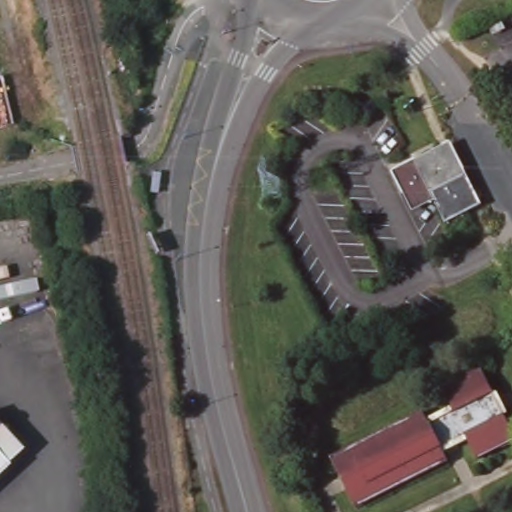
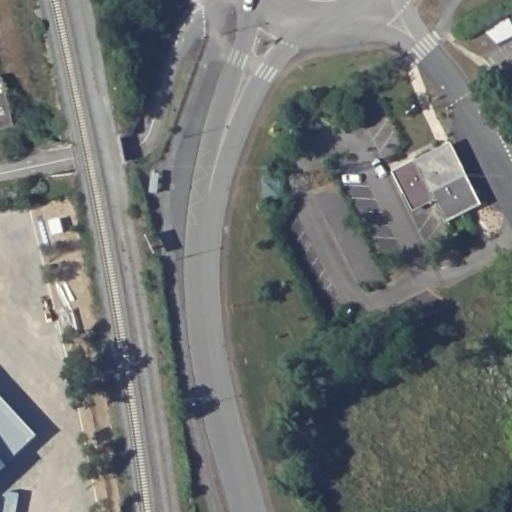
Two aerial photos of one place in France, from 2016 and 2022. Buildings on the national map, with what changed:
unchanged [(420,153),(437,145),(440,152),(450,147),(463,175),(474,195),(465,200),(468,207),(453,214),(441,190),(420,201),(400,163),(420,153)]
demolished [(427,417),(432,427),(455,415),(443,392),(482,372),(512,432),(512,445),(478,462),(467,439),(443,450),(449,461),(356,506),(335,463),(427,417)]
unchanged [(5,464),(5,466),(0,471),(0,426),(20,449),(5,464)]

